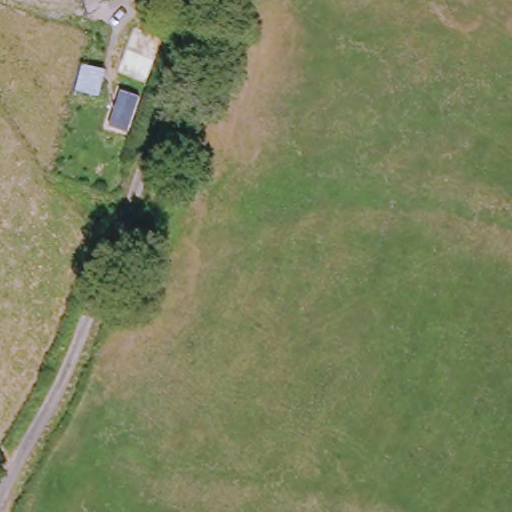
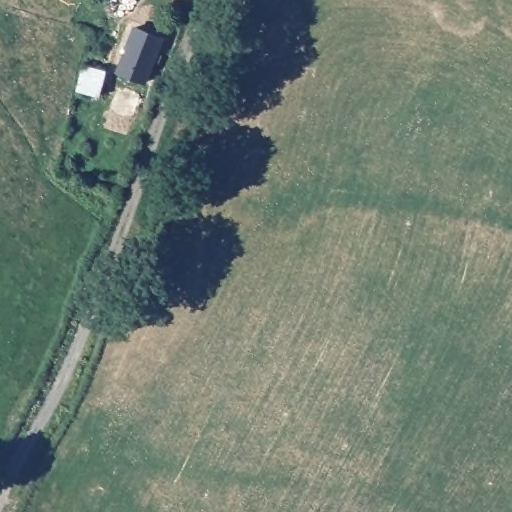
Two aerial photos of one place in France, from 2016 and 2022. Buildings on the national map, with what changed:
new [(164,37),(149,84),(116,73),(134,26),(164,37)]

